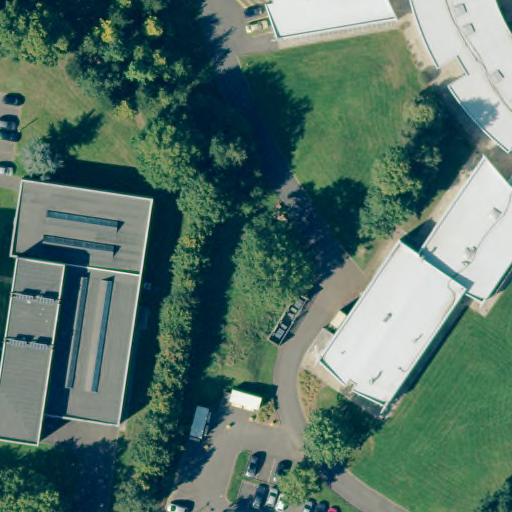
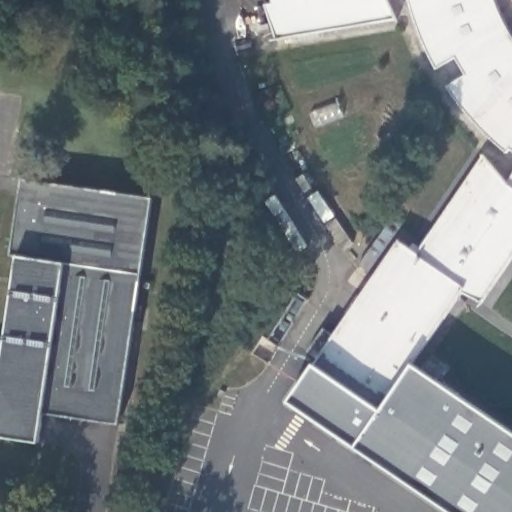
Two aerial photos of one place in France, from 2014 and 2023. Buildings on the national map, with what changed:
unchanged [(396,18),(395,19),(394,17),(276,37),(264,4),(273,3),(273,0),(388,0),(396,18)]
unchanged [(509,145),(505,150),(498,144),(470,116),(461,104),(477,90),(467,75),(446,83),(435,66),(423,42),(412,13),(409,0),(495,0),(502,17),(512,35),(512,148),(509,145)]
unchanged [(481,300),(461,290),(384,402),(353,388),(356,383),(349,377),(343,382),(316,357),(336,327),(398,237),(415,250),(482,154),(481,152),(482,151),(506,179),(512,170),(512,255),(481,300)]
unchanged [(10,253),(21,176),(152,195),(119,422),(43,411),(39,439),(0,434),(0,371),(17,254),(10,253)]
new [(343,382),(349,377),(356,383),(353,388),(384,402),(410,364),(512,433),(512,512),(453,512),(288,402),(316,357),(343,382)]

